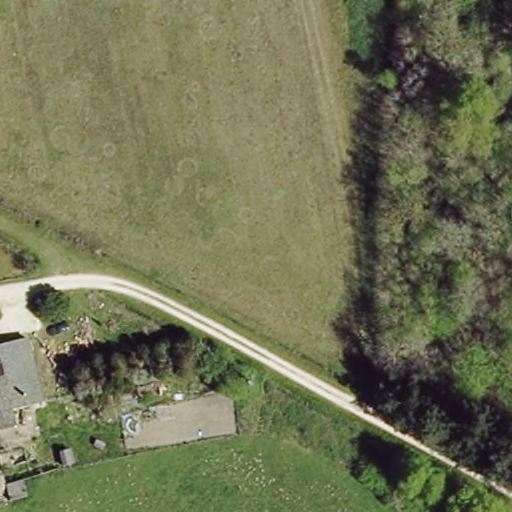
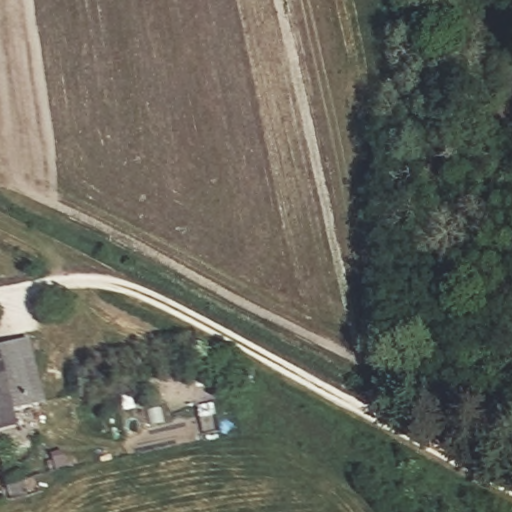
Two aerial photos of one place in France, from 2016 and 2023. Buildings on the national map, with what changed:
unchanged [(32,335),(50,402),(15,411),(18,424),(0,428),(0,342),(32,335)]

